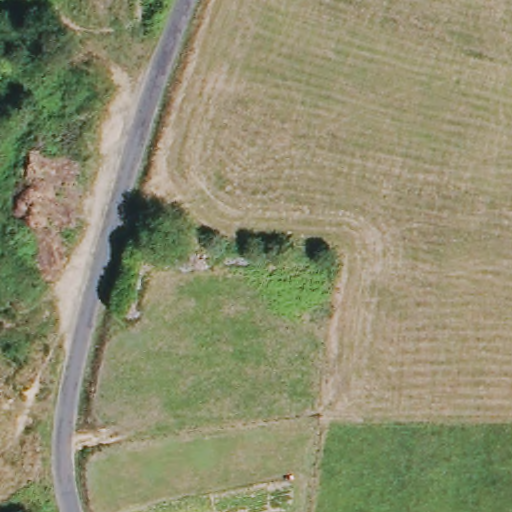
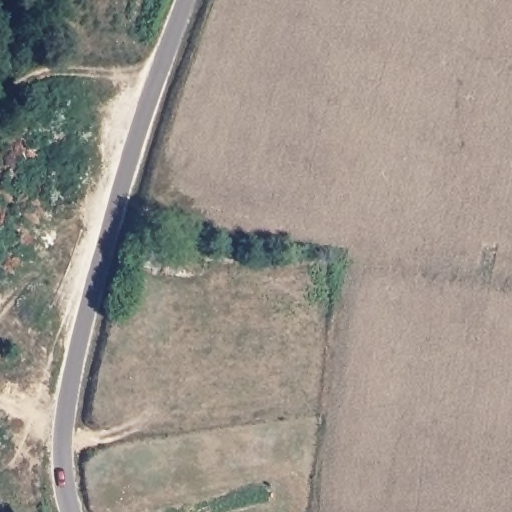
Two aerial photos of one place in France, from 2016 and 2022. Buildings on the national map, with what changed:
[]

